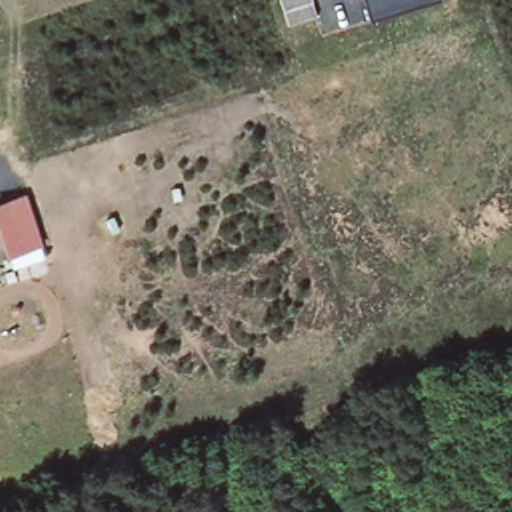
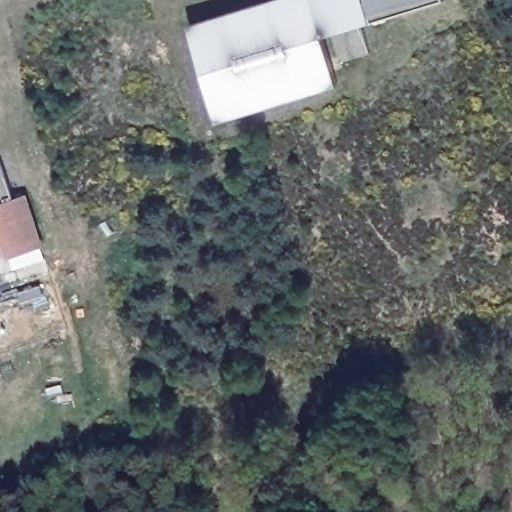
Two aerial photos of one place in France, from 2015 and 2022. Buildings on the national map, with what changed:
new [(374,20),(361,24),(370,52),(332,62),(339,84),(220,120),(192,23),(267,0),(367,0),(374,20)]
demolished [(320,16),(292,25),(284,0),(315,0),(320,16)]
unchanged [(367,0),(437,0),(374,20),(367,0)]
unchanged [(46,258),(12,272),(9,260),(0,233),(0,206),(25,197),(46,258)]

